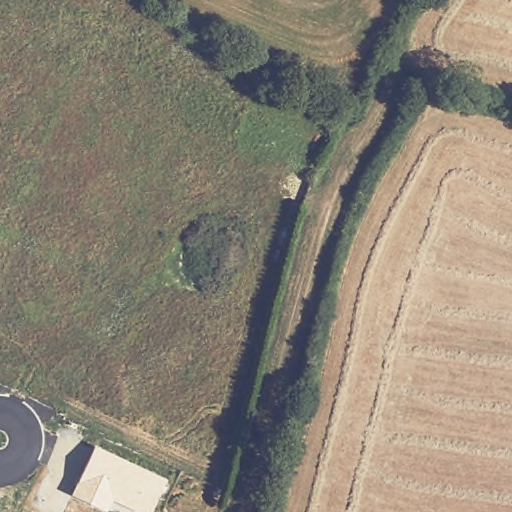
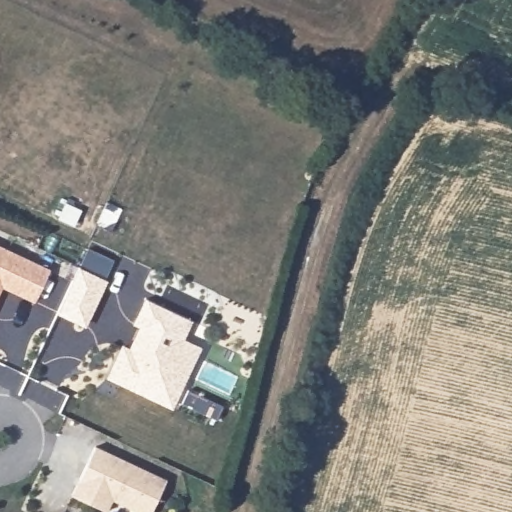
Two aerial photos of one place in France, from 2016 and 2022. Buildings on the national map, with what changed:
new [(52,268),(37,299),(4,283),(0,290),(0,242),(52,268)]
unchanged [(85,323),(58,311),(78,269),(104,280),(85,323)]
new [(144,297),(192,319),(183,339),(200,346),(172,409),(106,378),(122,344),(130,346),(139,325),(133,324),(144,297)]
unchanged [(69,496),(94,447),(166,479),(152,512),(139,512),(112,502),(107,511),(69,496)]

